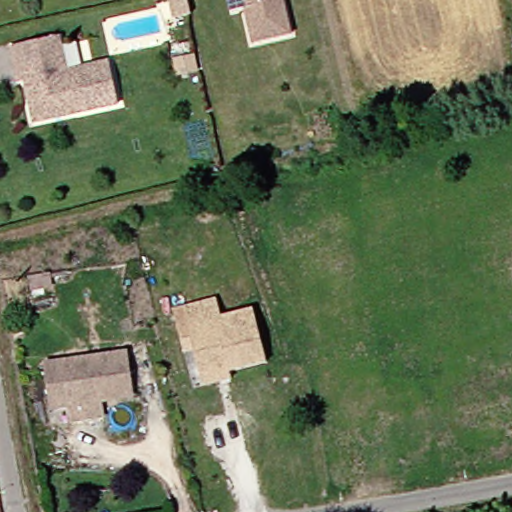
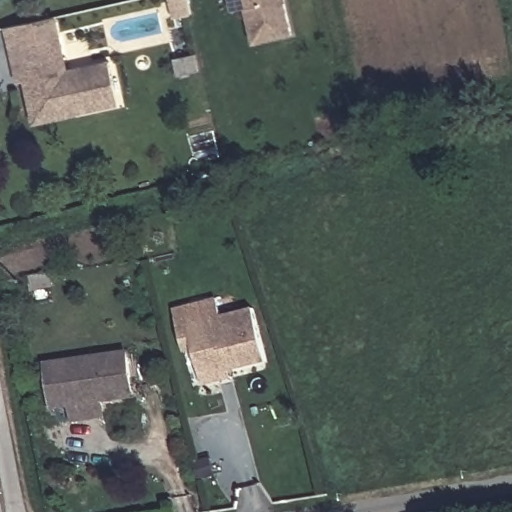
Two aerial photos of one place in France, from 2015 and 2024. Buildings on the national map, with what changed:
unchanged [(294,31),(255,40),(247,5),(250,5),(249,0),(287,0),(287,1),(294,31)]
unchanged [(503,0),(512,0),(512,41),(503,0)]
unchanged [(20,47),(55,40),(58,55),(62,76),(105,67),(113,110),(67,119),(65,106),(26,114),(20,85),(27,83),(23,65),(20,47)]
unchanged [(205,382),(202,370),(196,345),(187,348),(181,325),(176,306),(219,295),(224,313),(256,305),(269,358),(231,368),(233,375),(205,382)]
unchanged [(74,420),(72,403),(54,405),(47,361),(129,349),(135,393),(104,398),(106,415),(74,420)]

